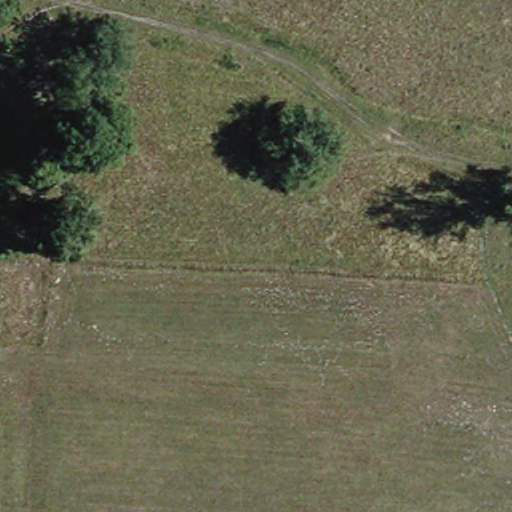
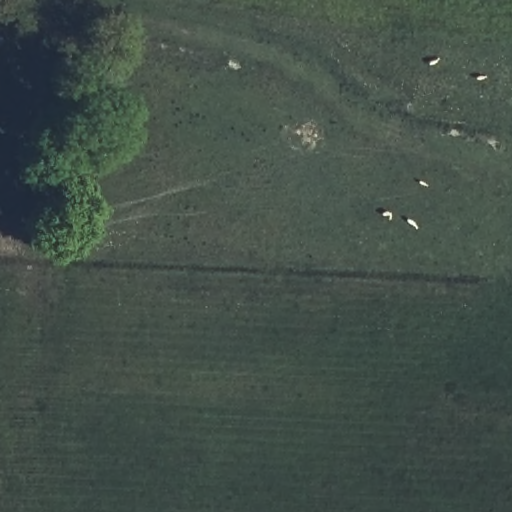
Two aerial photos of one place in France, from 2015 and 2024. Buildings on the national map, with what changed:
[]

